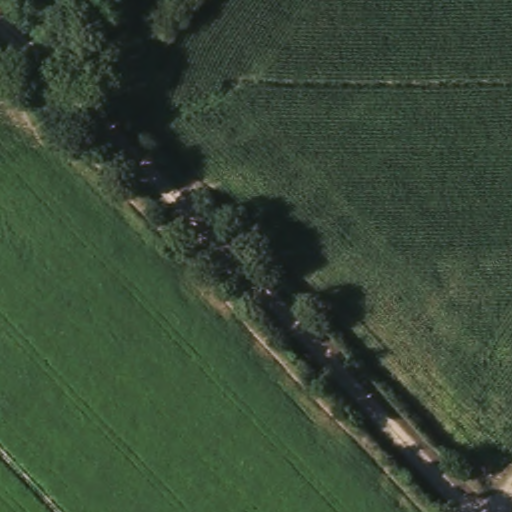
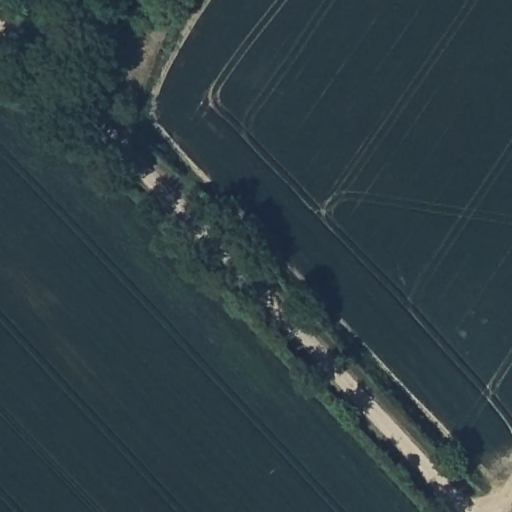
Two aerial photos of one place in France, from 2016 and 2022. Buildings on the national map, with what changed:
[]

